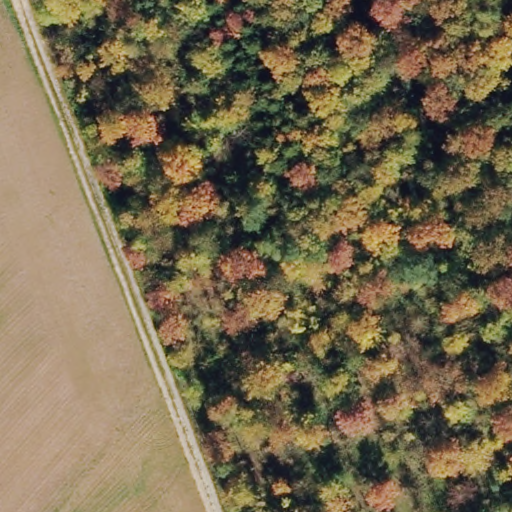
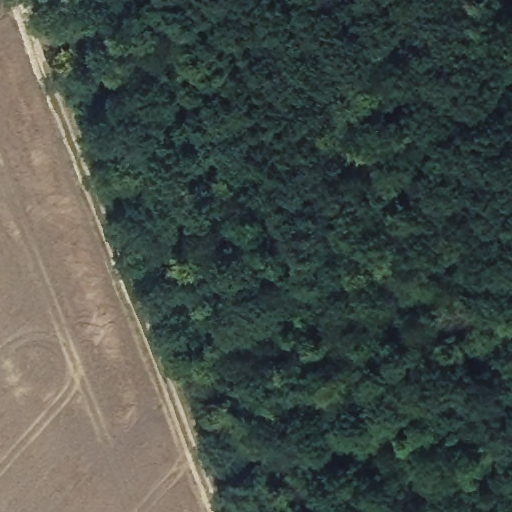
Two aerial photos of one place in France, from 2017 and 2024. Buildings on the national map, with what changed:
unchanged [(504,67),(512,65),(512,87),(504,67)]

